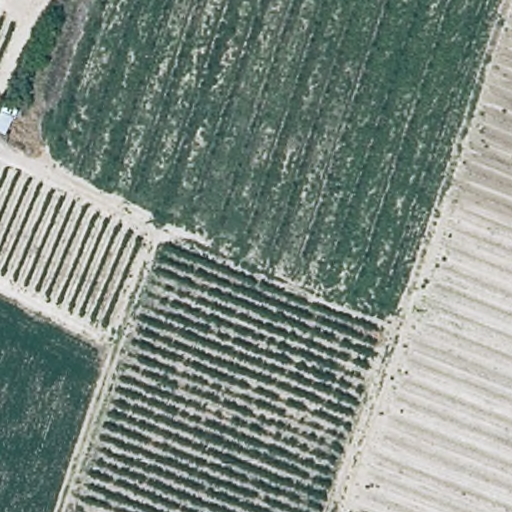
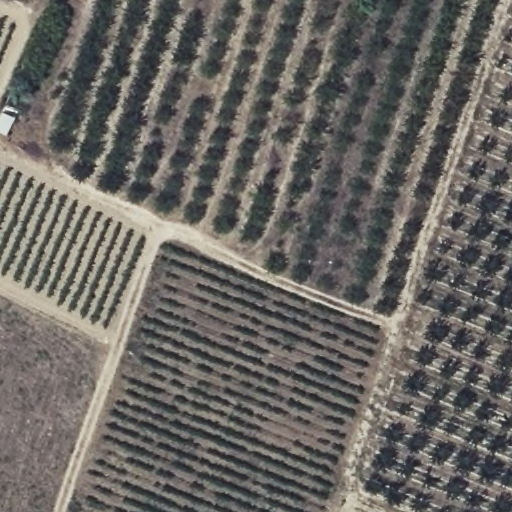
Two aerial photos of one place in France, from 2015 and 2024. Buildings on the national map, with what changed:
unchanged [(18,111),(8,135),(0,129),(0,112),(5,103),(18,111)]

